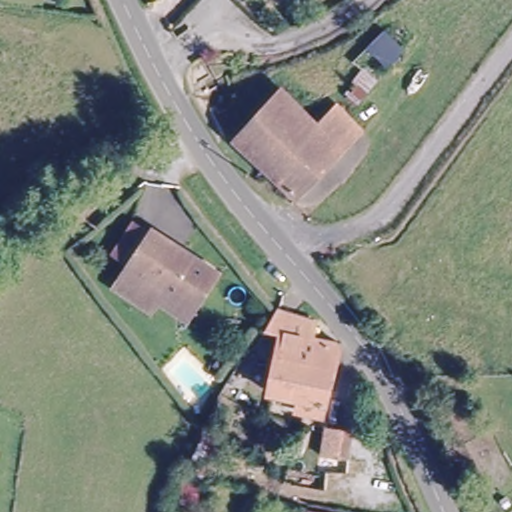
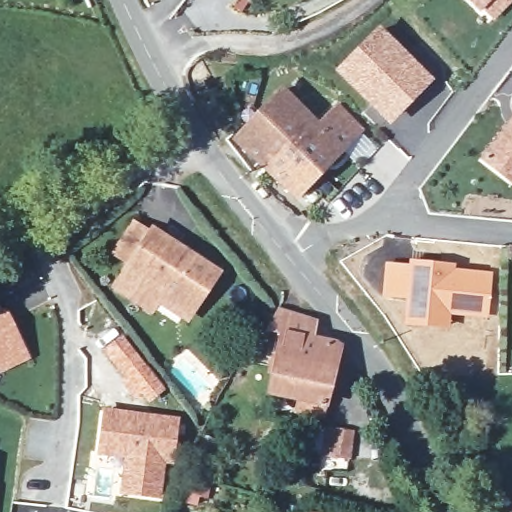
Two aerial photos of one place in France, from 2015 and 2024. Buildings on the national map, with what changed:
new [(482,8),(478,11),(467,0),(512,0),(512,2),(496,19),(482,8)]
new [(434,80),(390,126),(333,71),(380,26),(434,80)]
unchanged [(322,128),(341,109),(365,134),(346,151),(297,197),(238,144),(288,94),(322,128)]
new [(480,159),(512,116),(512,184),(480,159)]
unchanged [(155,302),(147,312),(114,289),(128,269),(112,258),(135,227),(150,237),(152,234),(217,279),(192,312),(184,322),(155,302)]
demolished [(326,237),(337,251),(336,254),(326,261),(315,246),(326,237)]
new [(408,264),(408,258),(457,262),(456,268),(492,272),(488,318),(452,315),(451,329),(402,324),(405,299),(382,296),(386,262),(408,264)]
unchanged [(265,327),(276,312),(280,306),(325,317),(319,342),(265,327)]
new [(0,311),(7,308),(30,359),(0,374),(0,311)]
unchanged [(318,421),(295,415),(297,403),(266,396),(277,346),(258,342),(261,333),(265,327),(319,342),(337,347),(318,421)]
new [(124,459),(97,456),(103,408),(180,417),(175,466),(166,465),(161,499),(119,494),(124,459)]
unchanged [(321,457),(322,435),(322,433),(338,434),(337,458),(321,457)]

